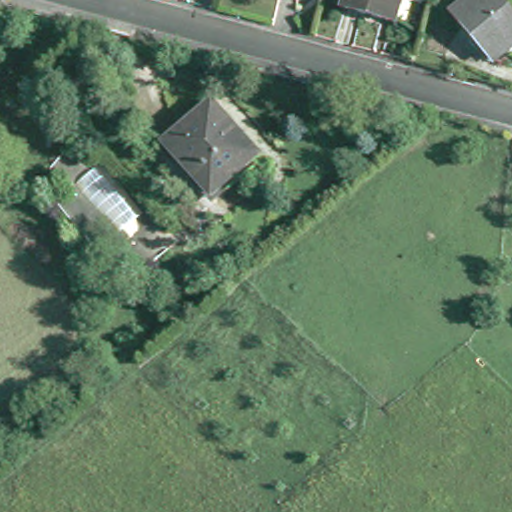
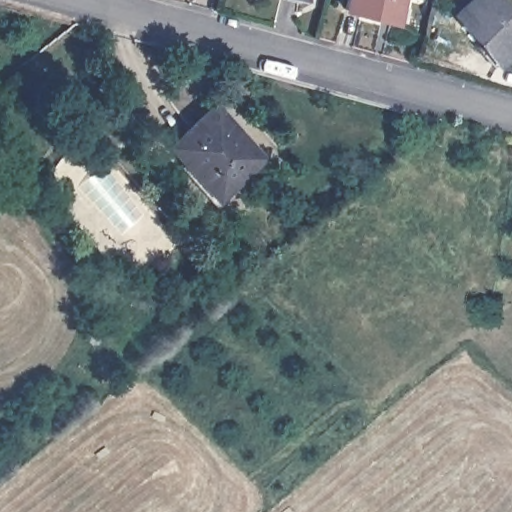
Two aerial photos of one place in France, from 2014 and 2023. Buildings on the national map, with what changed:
unchanged [(350,0),(401,0),(397,16),(349,4),(350,0)]
unchanged [(454,16),(472,0),(498,0),(512,16),(512,53),(497,66),(454,16)]
unchanged [(216,194),(169,144),(213,104),(260,155),(216,194)]

